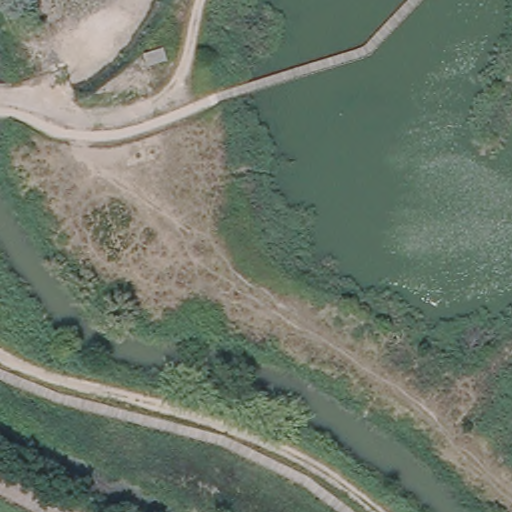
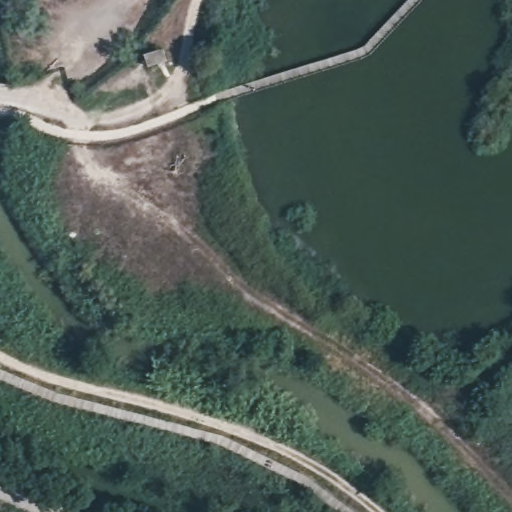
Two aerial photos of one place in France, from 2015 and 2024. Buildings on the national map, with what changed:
unchanged [(163,45),(168,60),(147,65),(145,52),(152,49),(155,48),(163,45)]

